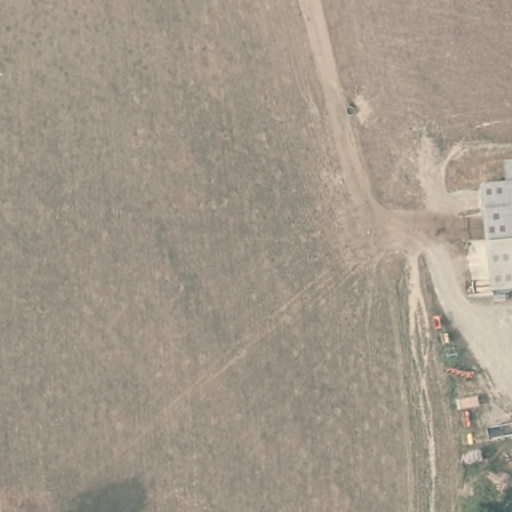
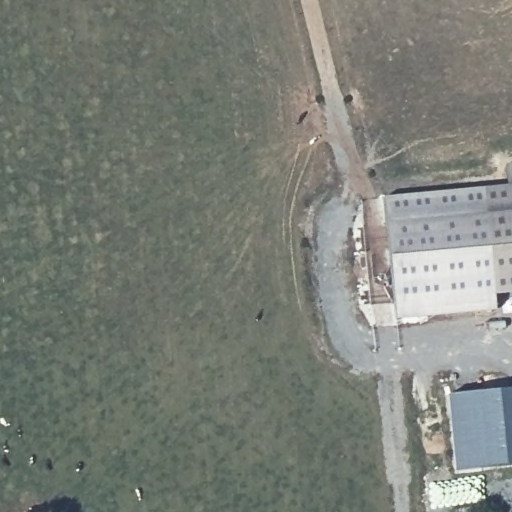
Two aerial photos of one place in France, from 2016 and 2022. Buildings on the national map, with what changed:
unchanged [(506,166),(512,165),(512,292),(493,293),(483,189),(507,187),(506,166)]
new [(493,293),(494,310),(395,320),(383,197),(483,189),(493,293)]
new [(512,389),(512,466),(455,471),(447,395),(512,389)]

